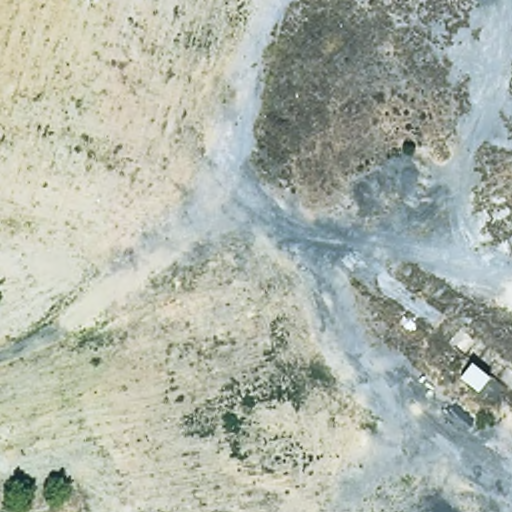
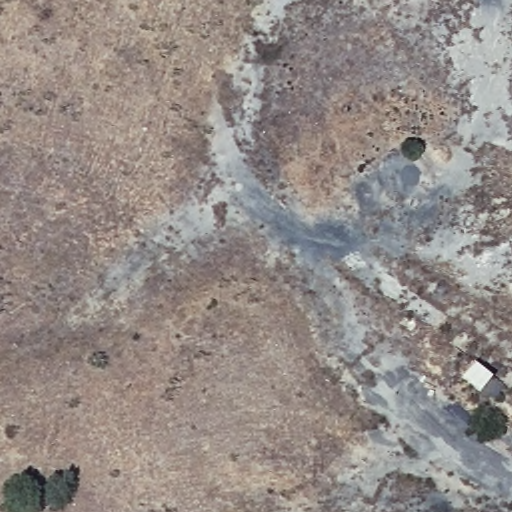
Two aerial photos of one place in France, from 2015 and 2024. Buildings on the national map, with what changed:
unchanged [(466,359),(490,373),(479,388),(458,374),(466,359)]

